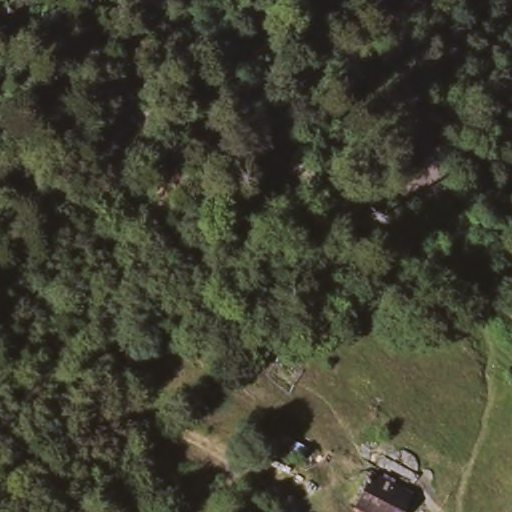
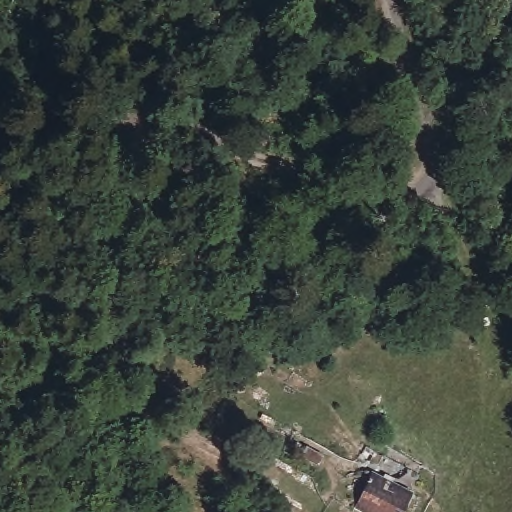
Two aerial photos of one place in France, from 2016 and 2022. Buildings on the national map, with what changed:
unchanged [(382,478),(405,489),(395,512),(358,512),(343,506),(359,469),(382,478)]

